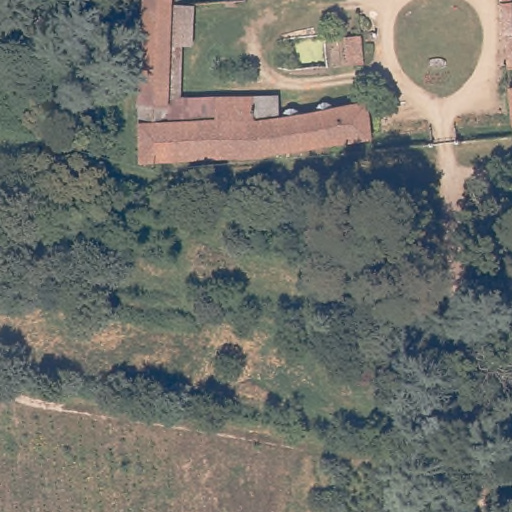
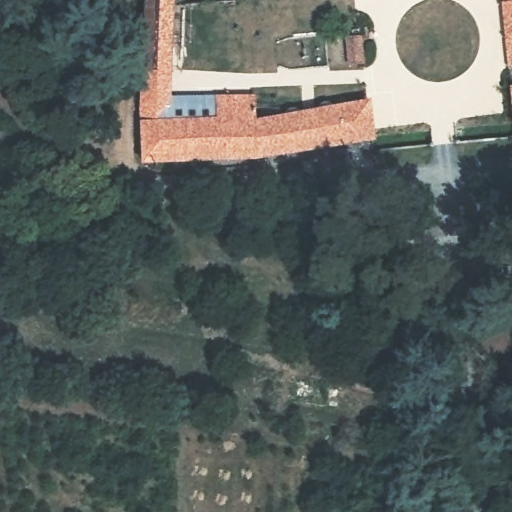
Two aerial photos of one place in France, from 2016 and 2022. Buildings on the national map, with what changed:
unchanged [(278,114),(286,114),(287,109),(291,106),(295,106),(299,107),(299,111),(317,110),(319,106),(322,101),(326,98),(331,100),(333,104),(369,101),(372,137),(249,157),(240,157),(148,160),(139,117),(144,0),(174,0),(172,92),(218,94),(256,94),(277,94),(277,114),(278,114)]
unchanged [(503,0),(512,0),(512,67),(510,67),(503,0)]
unchanged [(347,63),(345,31),(365,30),(366,61),(347,63)]
unchanged [(512,73),(512,98),(510,74),(512,73)]

